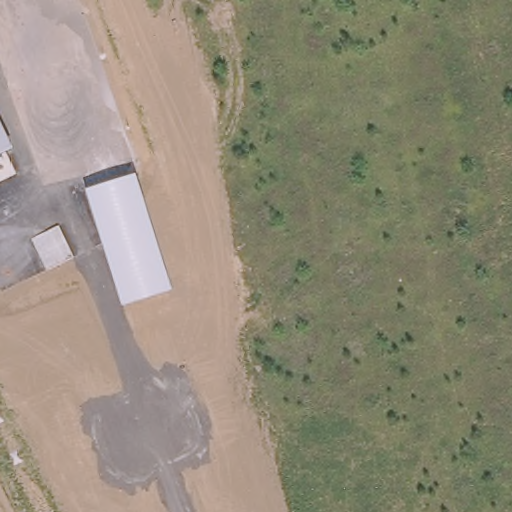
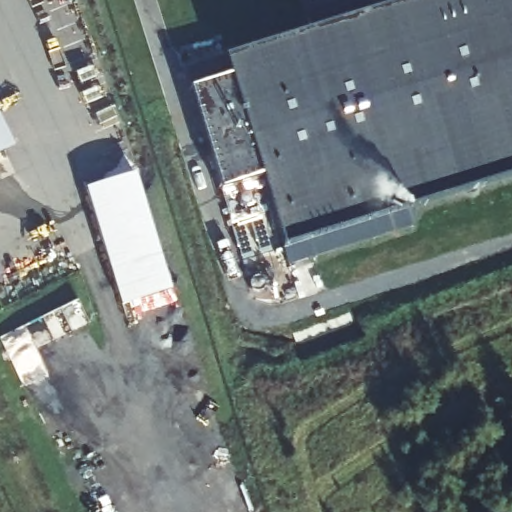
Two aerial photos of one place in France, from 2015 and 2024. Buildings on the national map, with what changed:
new [(394,0),(512,0),(512,175),(310,238),(317,267),(295,274),(264,181),(219,194),(183,70),(396,7),(394,0)]
new [(305,14),(352,0),(364,0),(368,14),(310,32),(305,14)]
unchanged [(13,149),(0,156),(0,121),(13,149)]
unchanged [(172,289),(122,305),(85,189),(136,173),(172,289)]

